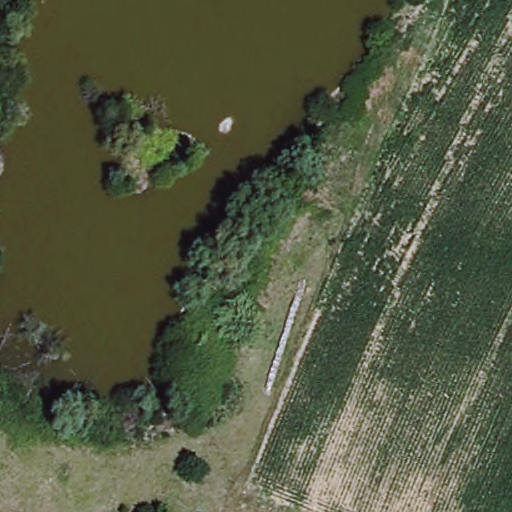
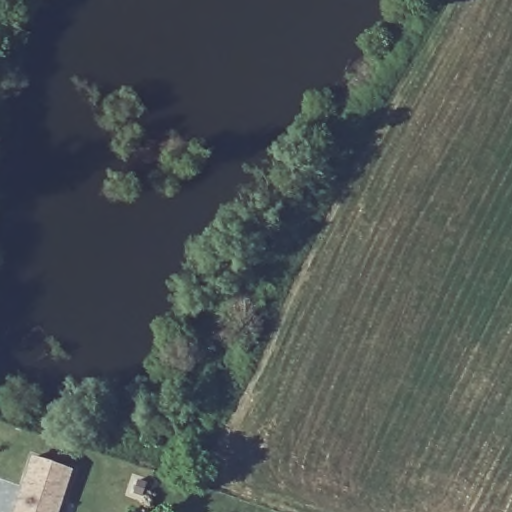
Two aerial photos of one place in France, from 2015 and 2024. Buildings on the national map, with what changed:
new [(29,460),(67,472),(54,512),(13,512),(29,460)]

